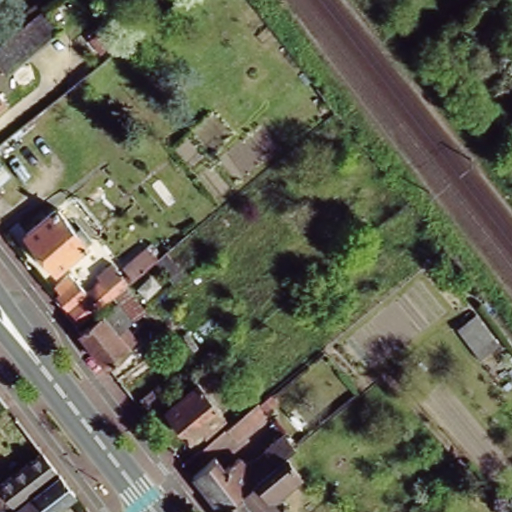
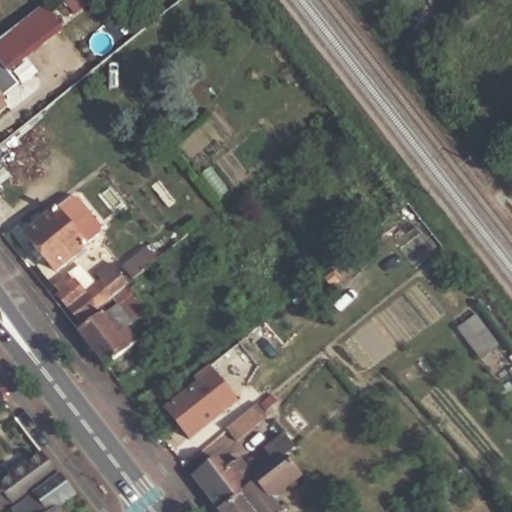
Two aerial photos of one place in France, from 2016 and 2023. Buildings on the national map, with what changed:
unchanged [(0,61),(0,40),(47,5),(66,33),(9,73),(0,61)]
unchanged [(1,102),(0,103),(0,101),(1,102)]
unchanged [(2,196),(0,197),(0,194),(2,196)]
unchanged [(60,205),(89,242),(56,267),(27,230),(60,205)]
unchanged [(82,318),(59,291),(62,288),(57,281),(71,270),(85,287),(115,262),(129,280),(125,282),(109,296),(82,318)]
unchanged [(149,312),(143,316),(139,312),(126,322),(136,336),(105,360),(81,329),(114,302),(109,296),(125,282),(149,312)]
unchanged [(457,327),(467,318),(477,332),(487,325),(500,341),(491,349),(481,357),(457,327)]
unchanged [(169,395),(153,407),(141,392),(157,380),(169,395)]
unchanged [(162,410),(198,382),(221,411),(185,439),(162,410)]
unchanged [(257,403),(267,415),(239,437),(230,425),(250,409),(257,403)]
unchanged [(288,456),(219,511),(192,476),(215,459),(224,470),(241,458),(249,468),(271,452),(267,447),(283,436),(294,451),(288,456)]
unchanged [(0,488),(0,483),(25,463),(24,461),(41,449),(57,470),(13,505),(0,488)]
unchanged [(303,476),(273,500),(279,508),(285,504),(289,510),(286,512),(219,512),(219,511),(288,456),(303,476)]
unchanged [(57,470),(73,491),(57,503),(63,512),(3,512),(13,505),(57,470)]

